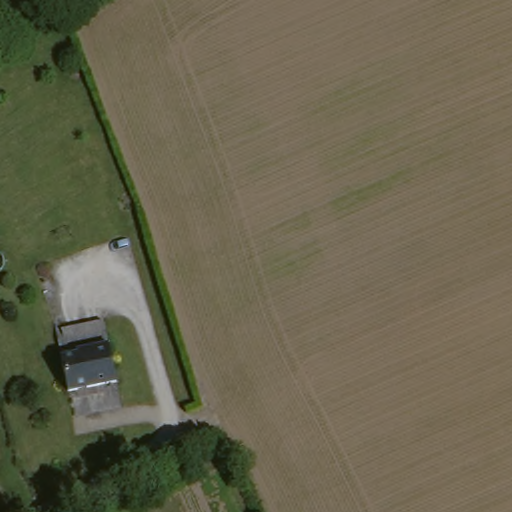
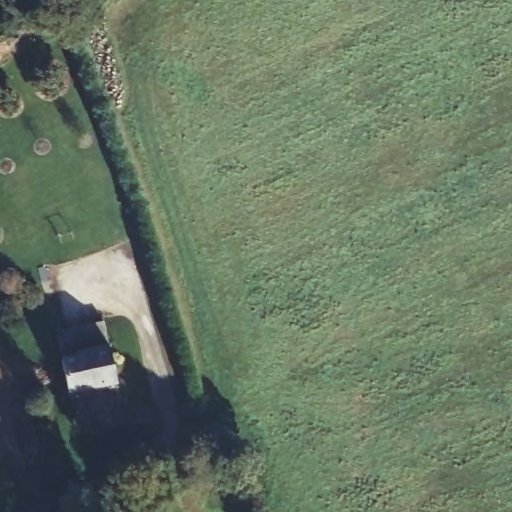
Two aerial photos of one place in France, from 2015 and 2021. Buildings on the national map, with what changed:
unchanged [(84,362),(83,355),(104,349),(113,387),(63,399),(55,370),(84,362)]

